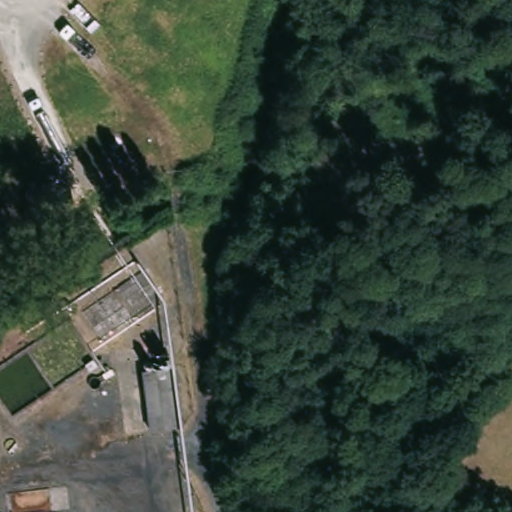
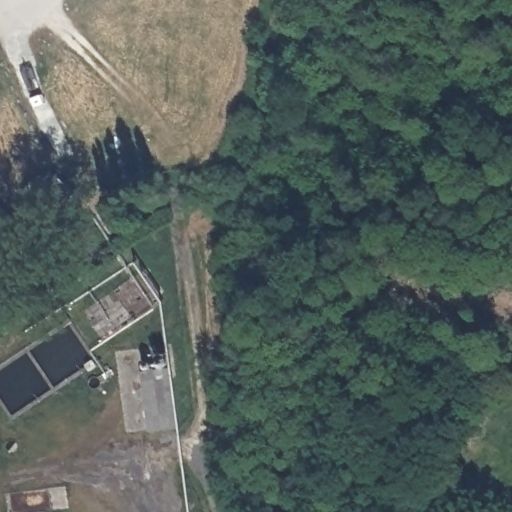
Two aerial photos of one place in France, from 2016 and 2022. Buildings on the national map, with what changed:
unchanged [(178,373),(184,418),(152,424),(147,378),(178,373)]

